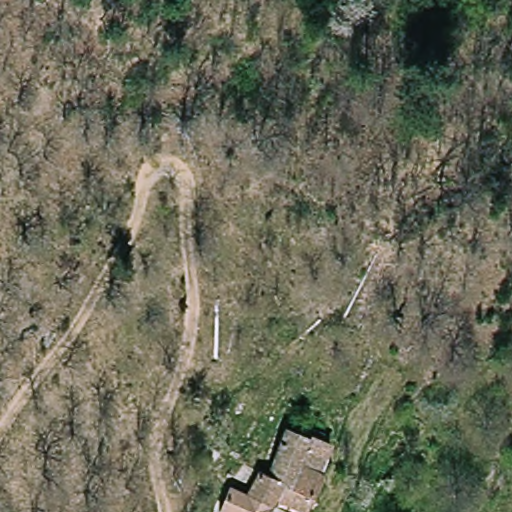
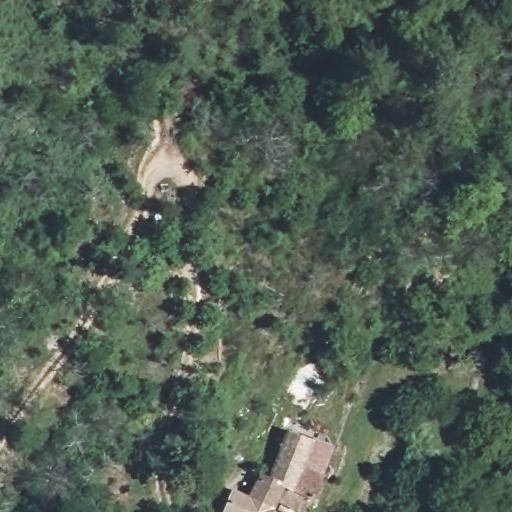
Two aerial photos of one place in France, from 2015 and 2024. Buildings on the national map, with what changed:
unchanged [(243,507),(252,481),(261,484),(277,437),(303,448),(306,439),(313,442),(321,452),(318,462),(321,464),(314,483),(304,507),(283,498),(275,494),(267,512),(219,512),(225,499),(243,507)]

